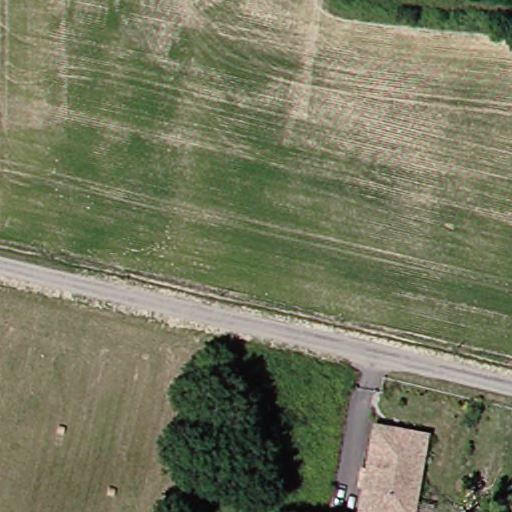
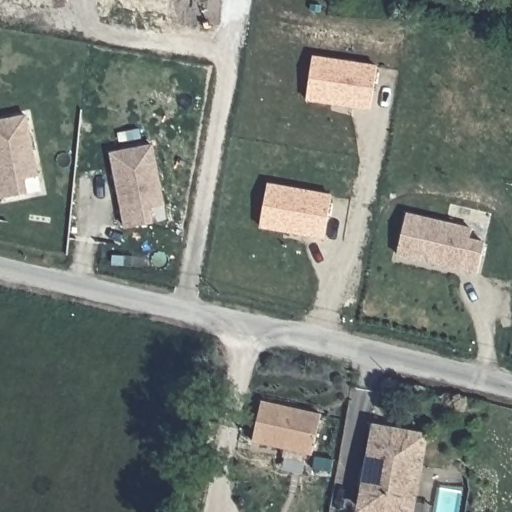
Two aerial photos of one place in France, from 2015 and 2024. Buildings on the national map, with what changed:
new [(375,67),(369,108),(307,99),(313,58),(375,67)]
new [(24,115),(38,173),(23,177),(27,192),(0,198),(0,196),(0,121),(24,115)]
new [(153,145),(164,204),(150,206),(153,221),(126,227),(112,153),(153,145)]
new [(261,225),(268,186),(331,197),(324,236),(261,225)]
new [(406,214),(472,227),(470,237),(485,241),(479,272),(397,257),(406,214)]
new [(261,405),(320,413),(314,454),(255,445),(261,405)]
unchanged [(384,509),(363,507),(376,426),(425,433),(418,473),(412,512),(400,512),(384,509)]

